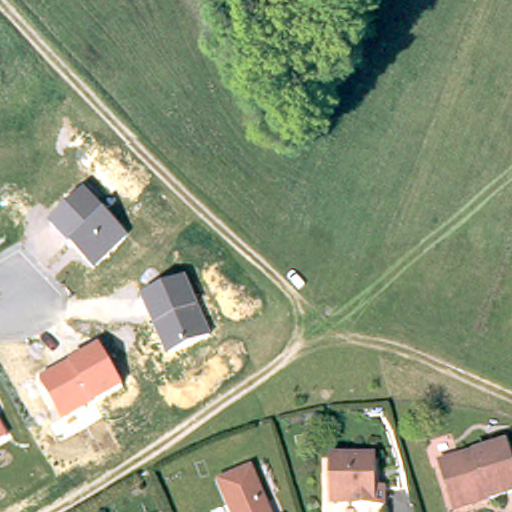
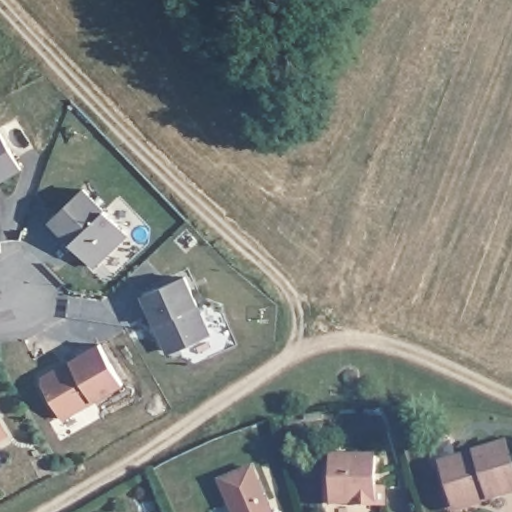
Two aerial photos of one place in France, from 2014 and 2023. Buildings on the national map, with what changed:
new [(0,183),(0,136),(21,171),(0,183)]
unchanged [(105,211),(126,234),(93,267),(70,242),(48,222),(83,187),(105,211)]
unchanged [(165,353),(155,326),(142,296),(185,277),(198,306),(210,335),(165,353)]
unchanged [(99,343),(122,385),(93,402),(62,420),(40,380),(68,361),(99,343)]
unchanged [(0,421),(8,437),(0,441),(0,421)]
unchanged [(437,467),(443,462),(504,445),(512,473),(512,492),(484,500),(483,495),(472,498),(470,504),(453,508),(447,505),(437,467)]
unchanged [(348,495),(327,495),(328,450),(373,451),(372,481),(379,480),(379,500),(348,500),(348,495)]
unchanged [(210,478),(247,468),(268,512),(225,512),(210,478)]

